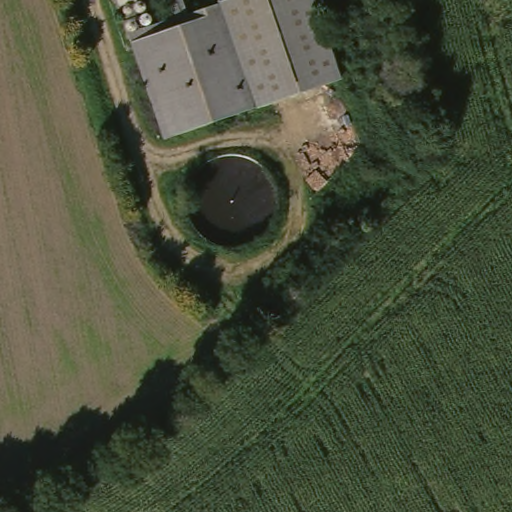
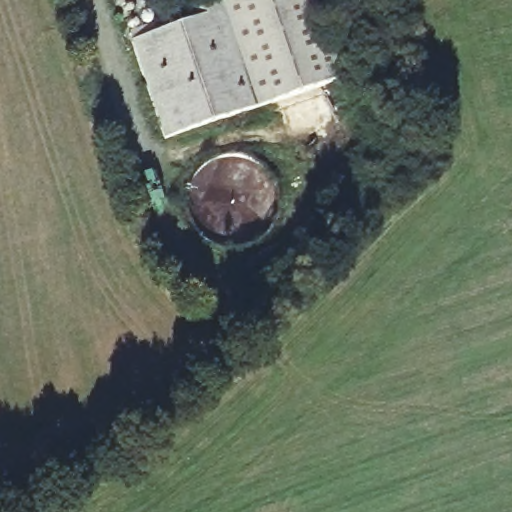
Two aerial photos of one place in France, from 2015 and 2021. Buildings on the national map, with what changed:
unchanged [(129,0),(132,0),(129,1),(129,0)]
unchanged [(212,0),(317,0),(342,79),(163,144),(131,26),(183,9),(181,0),(190,0),(192,6),(212,0)]

